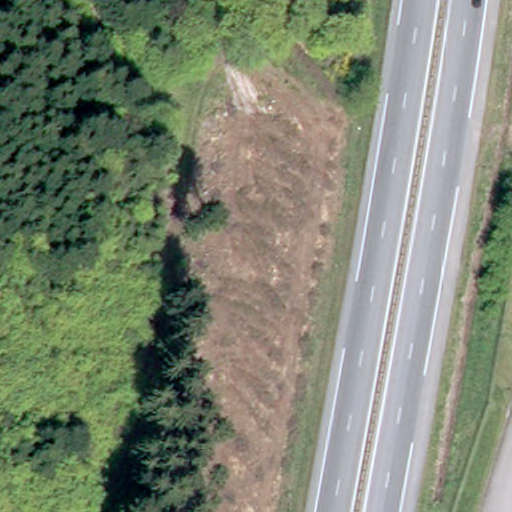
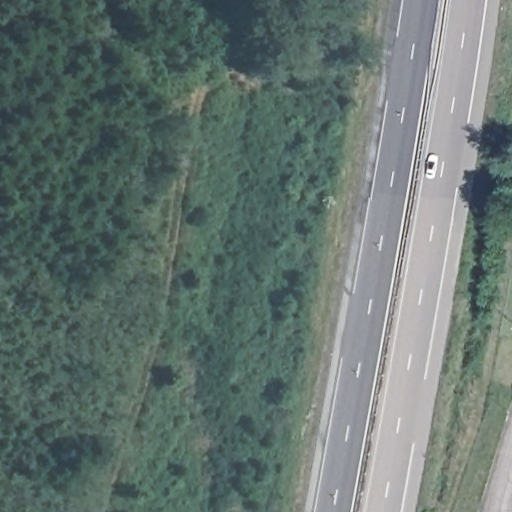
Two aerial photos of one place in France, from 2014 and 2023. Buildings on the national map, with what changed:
[]

